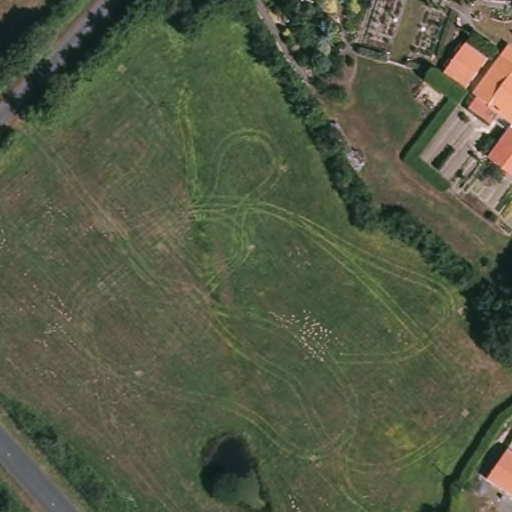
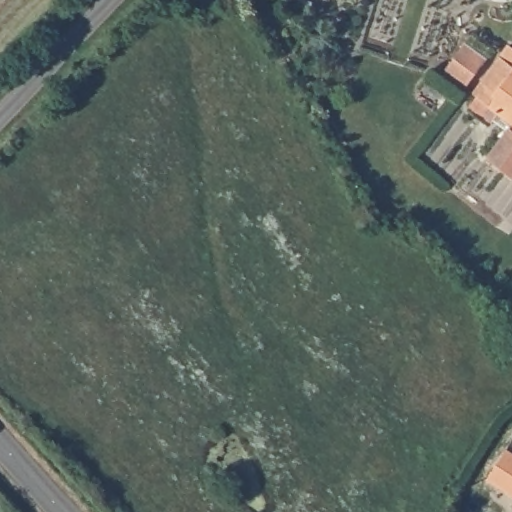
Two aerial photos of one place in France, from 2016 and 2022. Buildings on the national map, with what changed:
unchanged [(484,60),(461,92),(438,76),(461,45),(484,60)]
unchanged [(510,127),(499,120),(491,131),(465,114),(473,101),(469,99),(497,57),(505,47),(512,52),(512,175),(491,159),(510,127)]
unchanged [(507,469),(495,460),(492,458),(512,432),(512,496),(495,483),(507,469)]

